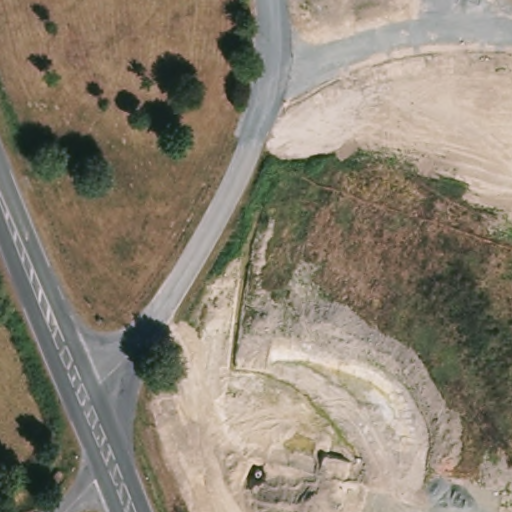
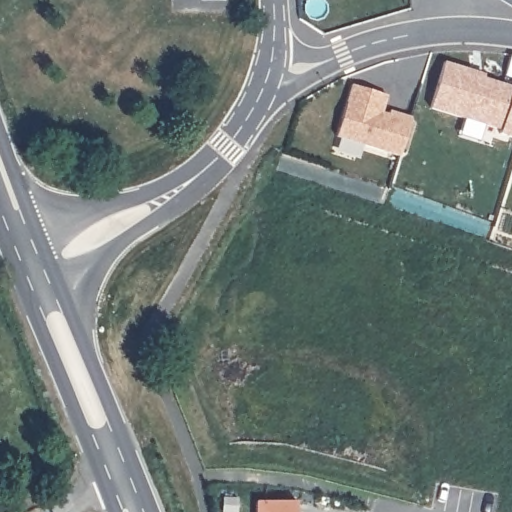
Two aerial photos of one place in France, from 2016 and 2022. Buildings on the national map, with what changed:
new [(473,70),(476,75),(512,86),(512,136),(498,132),(499,128),(428,106),(443,60),(473,70)]
new [(336,136),(351,84),(387,95),(382,111),(388,114),(390,109),(409,116),(398,153),(336,136)]
new [(250,502),(290,502),(290,512),(250,512),(250,502)]

